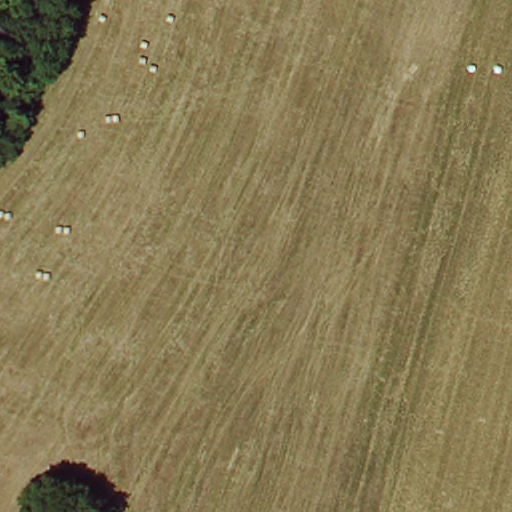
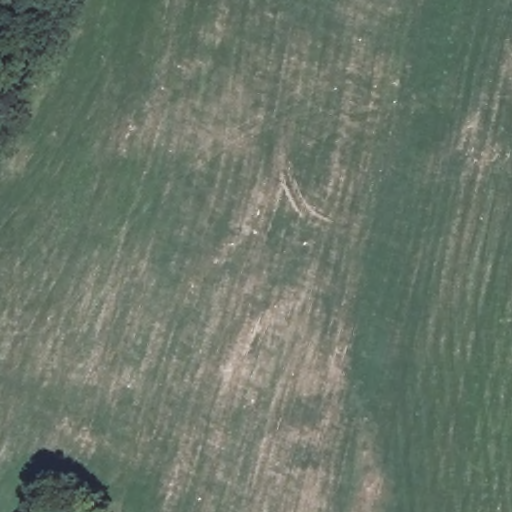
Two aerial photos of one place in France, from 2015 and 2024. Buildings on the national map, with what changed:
[]

